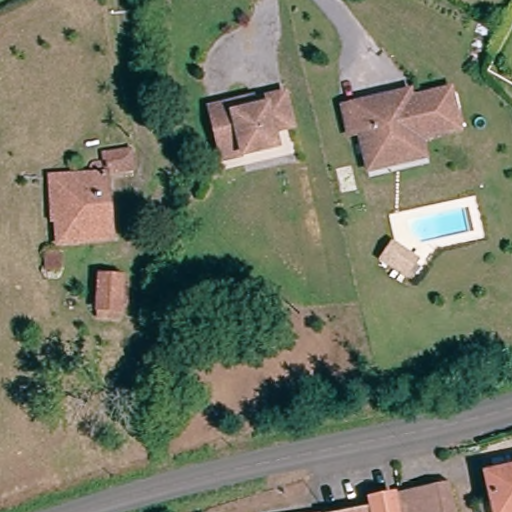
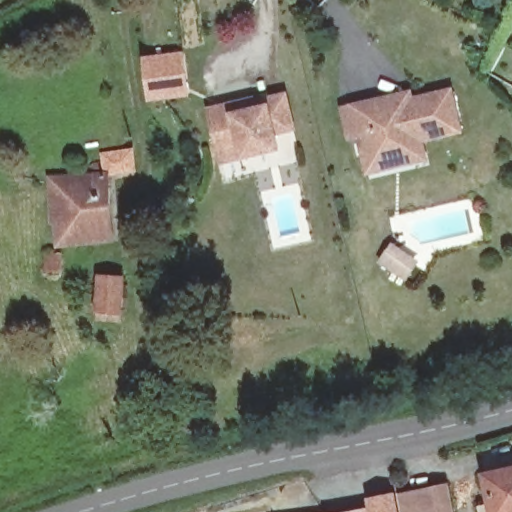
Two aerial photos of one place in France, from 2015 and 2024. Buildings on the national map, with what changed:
new [(184,50),(189,96),(146,102),(141,55),(184,50)]
unchanged [(402,165),(368,168),(365,131),(355,131),(353,101),(394,97),(420,95),(421,104),(462,99),(466,140),(425,144),(427,163),(402,165)]
unchanged [(224,149),(215,112),(258,103),(260,111),(271,109),(270,103),(290,97),(298,131),(279,135),(282,151),(248,159),(228,164),(224,149)]
unchanged [(134,151),(134,174),(107,178),(110,238),(57,240),(49,177),(87,173),(87,163),(106,159),(106,153),(134,151)]
unchanged [(402,267),(391,279),(368,258),(379,246),(402,267)]
unchanged [(46,272),(44,255),(59,253),(61,275),(52,273),(46,272)]
unchanged [(114,311),(93,307),(97,275),(119,278),(114,311)]
unchanged [(471,475),(512,466),(512,512),(478,512),(471,475)]
unchanged [(424,508),(408,510),(405,487),(419,484),(450,478),(459,512),(425,512),(424,508)]
unchanged [(398,512),(369,512),(367,505),(365,496),(393,490),(398,512)]
unchanged [(367,505),(369,512),(336,512),(367,505)]

